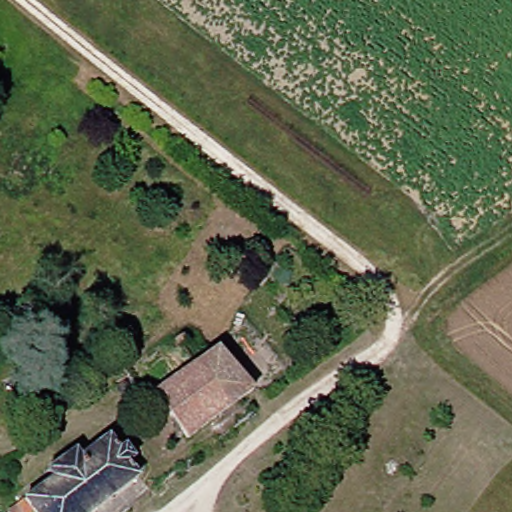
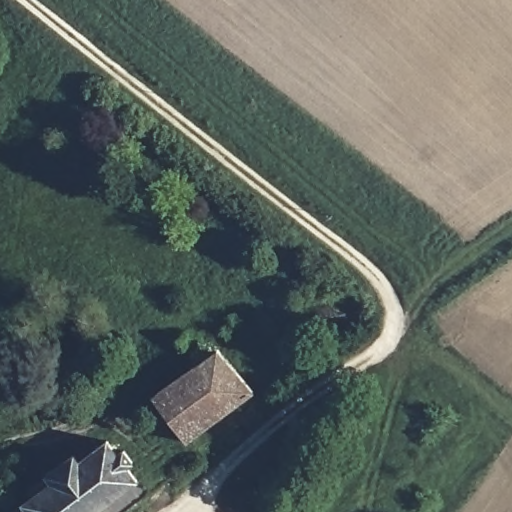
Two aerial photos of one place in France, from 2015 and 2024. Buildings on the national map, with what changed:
unchanged [(176,345),(172,339),(179,333),(183,340),(176,345)]
unchanged [(238,427),(213,446),(200,430),(181,444),(146,401),(212,348),(245,394),(235,401),(226,409),(238,427)]
unchanged [(110,493),(85,512),(5,512),(42,483),(36,475),(64,454),(70,461),(97,439),(107,453),(115,448),(122,458),(116,464),(128,478),(118,487),(133,504),(125,511),(110,493)]

